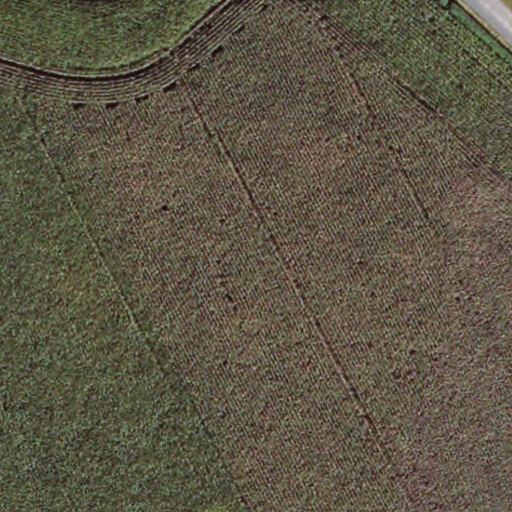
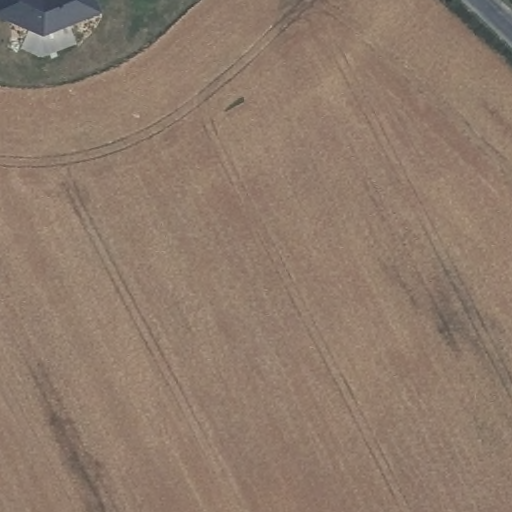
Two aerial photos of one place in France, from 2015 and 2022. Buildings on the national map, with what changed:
new [(103,9),(47,33),(0,14),(0,6),(2,0),(99,0),(103,9)]

